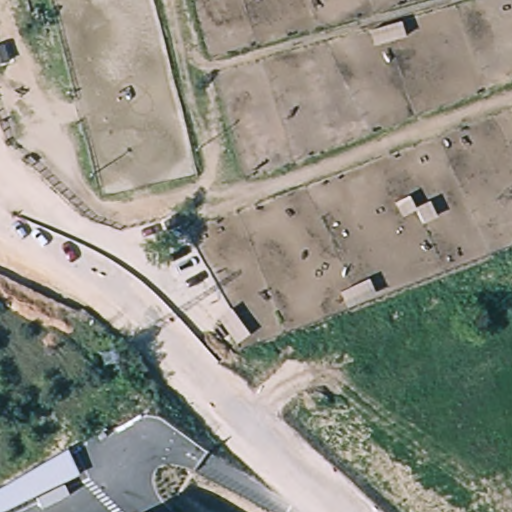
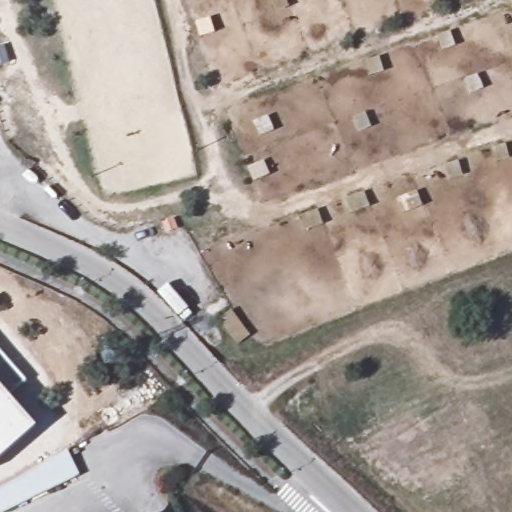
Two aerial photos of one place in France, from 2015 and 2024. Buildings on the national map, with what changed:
unchanged [(13,57),(0,61),(0,45),(8,43),(13,57)]
unchanged [(223,317),(236,308),(256,334),(242,344),(223,317)]
new [(37,427),(0,459),(0,350),(27,381),(11,398),(37,427)]
unchanged [(0,489),(66,450),(79,475),(2,512),(0,512),(0,489)]

